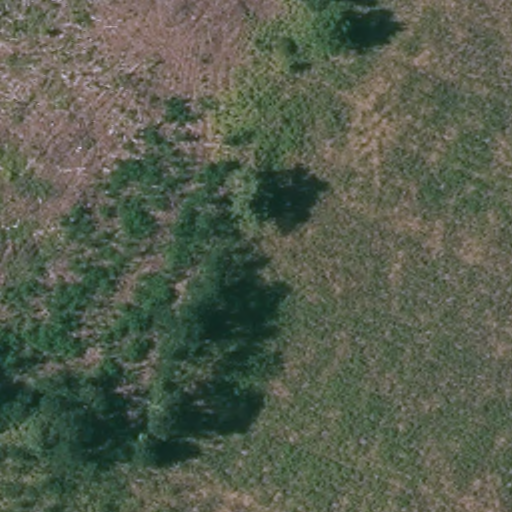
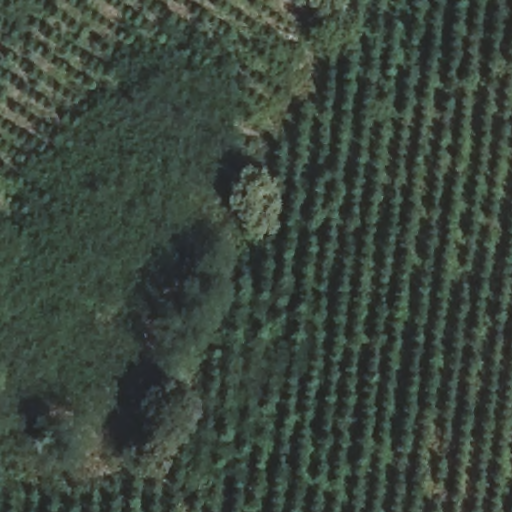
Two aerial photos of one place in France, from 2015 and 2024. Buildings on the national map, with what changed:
[]

